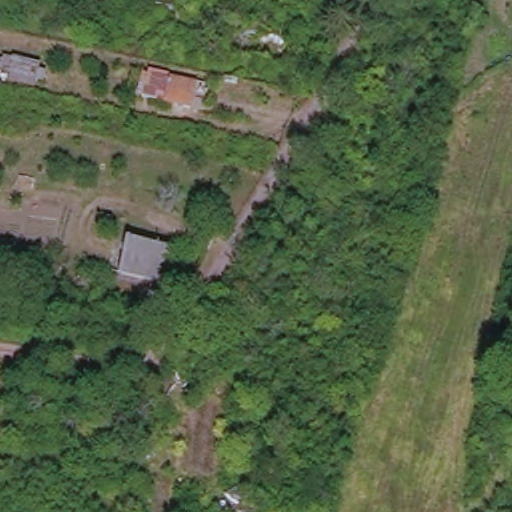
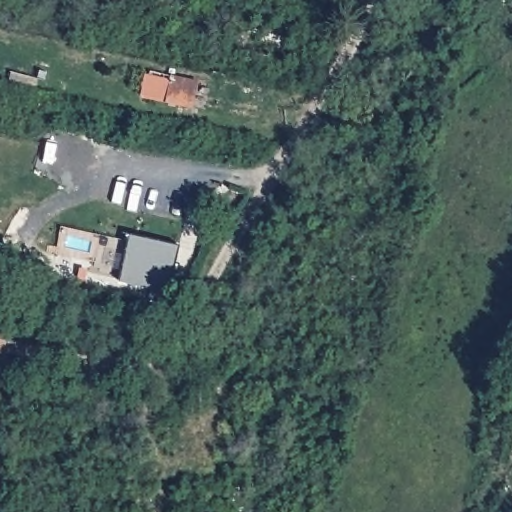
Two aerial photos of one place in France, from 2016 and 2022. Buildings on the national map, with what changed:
unchanged [(176,252),(170,285),(124,275),(132,243),(176,252)]

